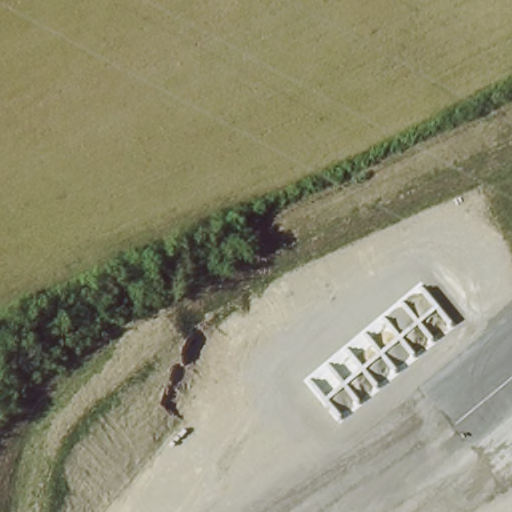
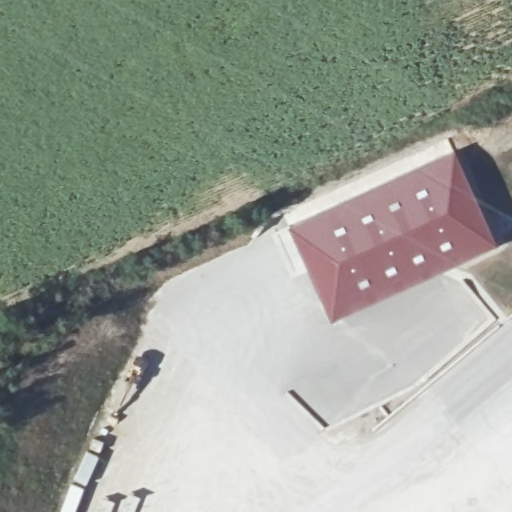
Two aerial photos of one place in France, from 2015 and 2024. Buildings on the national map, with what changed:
new [(452,148),(495,243),(322,320),(287,221),(452,148)]

